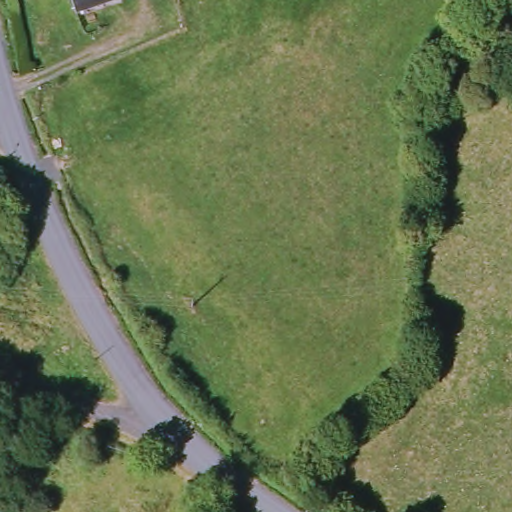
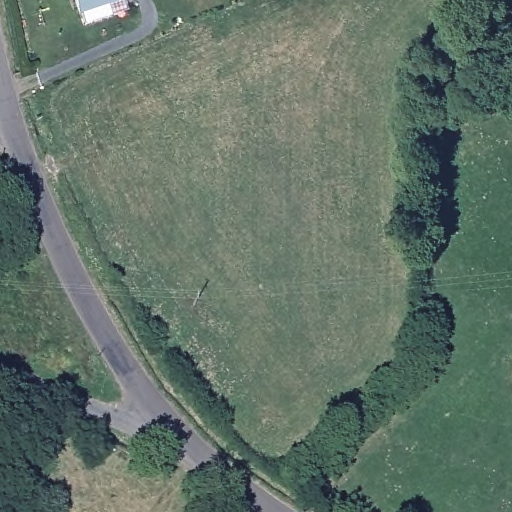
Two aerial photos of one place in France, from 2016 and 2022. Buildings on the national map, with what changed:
unchanged [(84,15),(76,0),(115,0),(84,15)]

